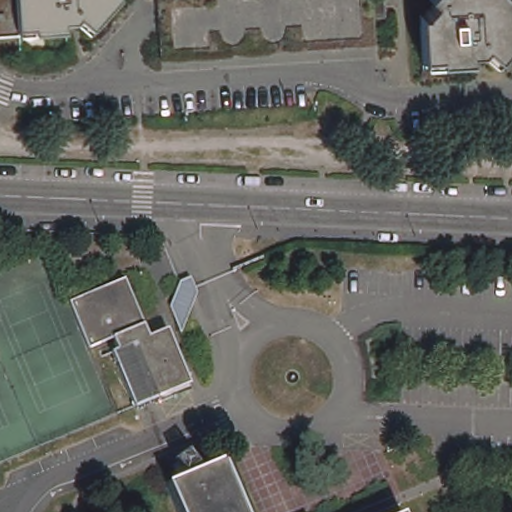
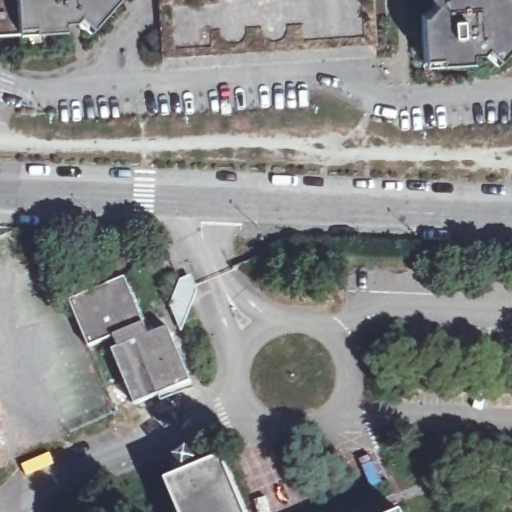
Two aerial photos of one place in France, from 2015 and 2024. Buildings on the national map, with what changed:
unchanged [(76,21),(67,21),(67,33),(0,36),(0,0),(117,0),(89,33),(76,21)]
unchanged [(482,50),(471,51),(472,60),(426,64),(422,12),(426,12),(436,1),(435,0),(512,0),(512,42),(495,61),(482,50)]
unchanged [(90,347),(71,300),(125,278),(143,319),(151,335),(168,328),(191,382),(138,404),(115,350),(120,349),(115,337),(90,347)]
unchanged [(173,305),(178,294),(189,299),(185,308),(190,310),(186,319),(177,315),(173,305)]
unchanged [(167,481),(189,472),(185,467),(180,471),(173,461),(178,457),(177,454),(190,445),(204,466),(224,458),(247,512),(181,512),(167,481)]

